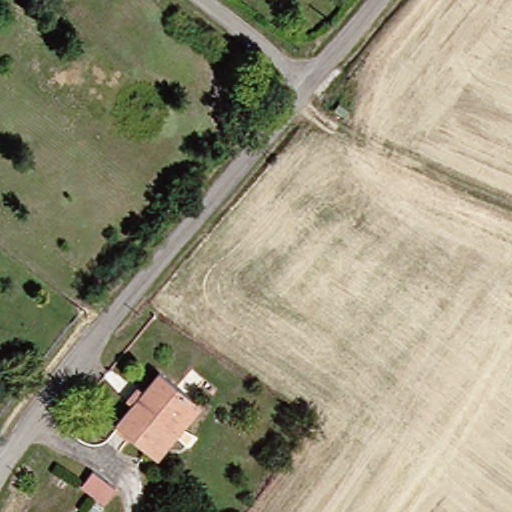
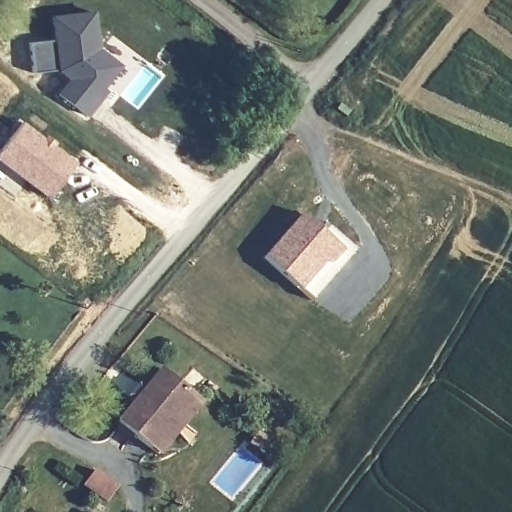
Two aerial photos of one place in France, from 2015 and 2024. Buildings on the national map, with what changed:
new [(101,96),(89,112),(62,92),(75,76),(63,67),(56,15),(95,10),(100,46),(122,63),(105,85),(108,88),(101,96)]
new [(77,161),(51,195),(0,156),(0,153),(25,120),(77,161)]
new [(307,211),(356,256),(317,298),(268,254),(307,211)]
unchanged [(162,461),(154,455),(119,428),(160,376),(195,402),(204,408),(162,461)]
unchanged [(117,490),(106,504),(83,487),(94,472),(117,490)]
unchanged [(94,512),(91,512),(92,510),(94,512)]

